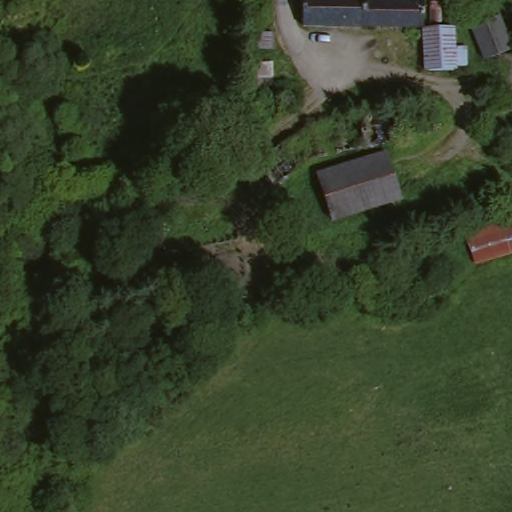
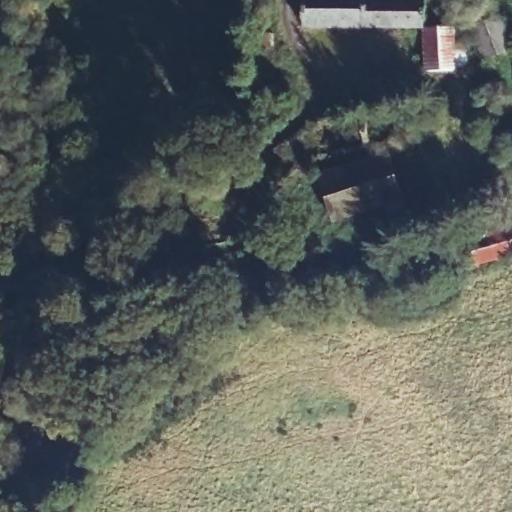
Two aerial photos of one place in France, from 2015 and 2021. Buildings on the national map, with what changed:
unchanged [(360,31),(299,32),(299,0),(360,0),(360,31)]
unchanged [(422,0),(424,31),(360,31),(360,0),(411,0),(422,0)]
unchanged [(505,54),(477,64),(463,32),(489,19),(505,54)]
unchanged [(447,31),(449,74),(425,75),(424,31),(447,31)]
unchanged [(317,177),(372,158),(387,207),(332,222),(317,177)]
unchanged [(457,235),(510,220),(512,229),(512,259),(469,273),(457,235)]

